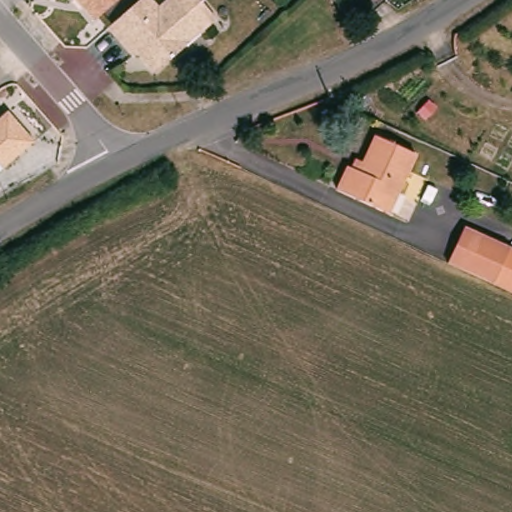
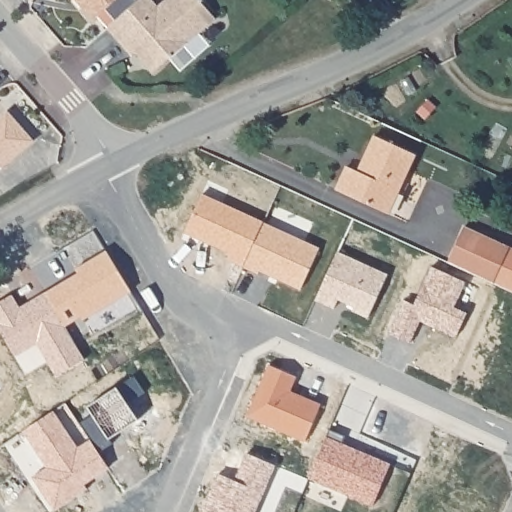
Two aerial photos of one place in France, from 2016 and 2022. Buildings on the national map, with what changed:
unchanged [(94,19),(82,5),(85,3),(82,0),(116,0),(94,19)]
unchanged [(215,16),(154,72),(136,51),(132,55),(107,27),(133,5),(138,0),(154,0),(158,5),(164,0),(201,0),(215,16)]
unchanged [(35,141),(4,169),(0,165),(0,118),(8,111),(35,141)]
unchanged [(416,155),(388,213),(337,190),(347,166),(352,157),(362,162),(377,135),(416,155)]
new [(205,194),(265,221),(245,266),(229,259),(232,252),(187,231),(205,194)]
new [(265,221),(320,246),(301,288),(260,270),(259,273),(245,266),(265,221)]
unchanged [(452,264),(470,225),(512,246),(512,290),(452,264)]
new [(79,272),(76,268),(108,250),(133,291),(85,320),(83,317),(67,326),(47,291),(79,272)]
new [(338,252),(388,275),(368,318),(353,311),(355,307),(338,300),(334,309),(316,301),(338,252)]
new [(467,281),(456,306),(468,312),(457,337),(422,321),(413,343),(390,332),(405,299),(416,303),(433,265),(467,281)]
new [(21,306),(47,291),(67,326),(86,359),(57,377),(37,343),(15,356),(0,331),(0,302),(14,293),(21,306)]
new [(269,365),(298,376),(292,391),(322,403),(305,444),(246,420),(269,365)]
new [(40,422),(42,422),(44,420),(44,418),(55,410),(80,447),(91,439),(112,469),(87,485),(90,490),(57,512),(56,512),(33,477),(48,467),(25,431),(40,421),(40,422)]
new [(331,429),(347,435),(344,443),(392,464),(375,506),(310,478),(331,429)]
new [(237,480),(250,453),(276,465),(255,512),(203,512),(220,472),(237,480)]

